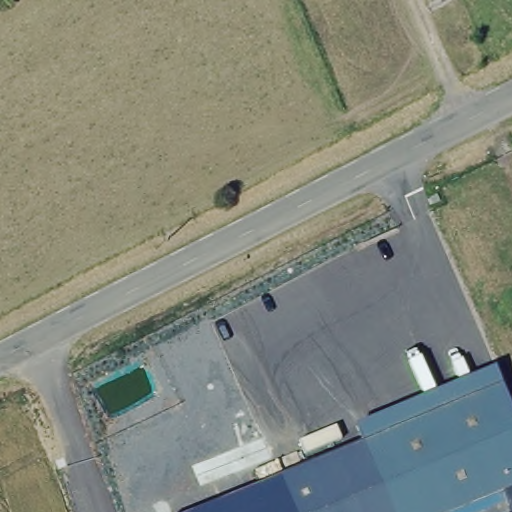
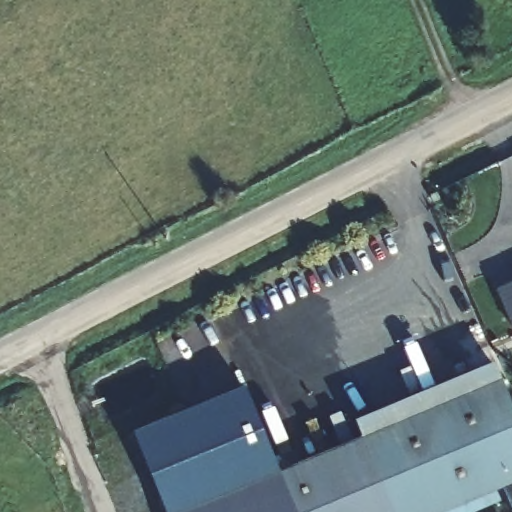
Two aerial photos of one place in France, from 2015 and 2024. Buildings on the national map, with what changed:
new [(495,290),(512,284),(512,329),(495,290)]
unchanged [(362,442),(358,432),(498,375),(502,383),(362,442)]
unchanged [(480,512),(294,512),(279,476),(287,472),(362,442),(502,383),(512,407),(512,512),(509,512),(505,502),(480,512)]
new [(181,512),(165,512),(134,434),(247,388),(279,476),(181,512)]
unchanged [(294,512),(181,512),(279,476),(294,512)]

